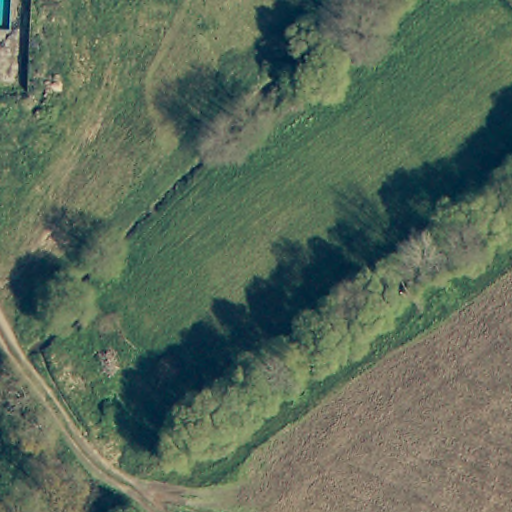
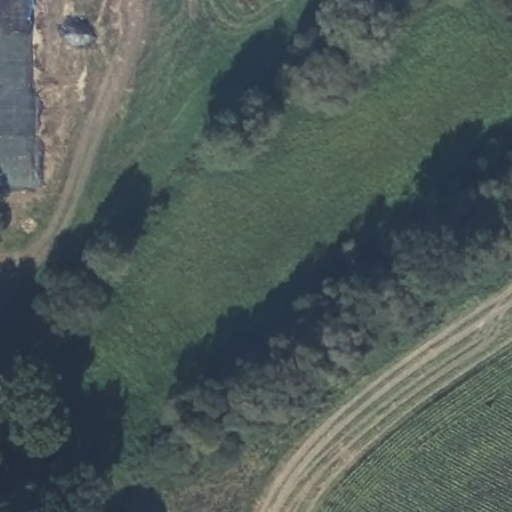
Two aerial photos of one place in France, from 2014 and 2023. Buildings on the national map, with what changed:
[]

